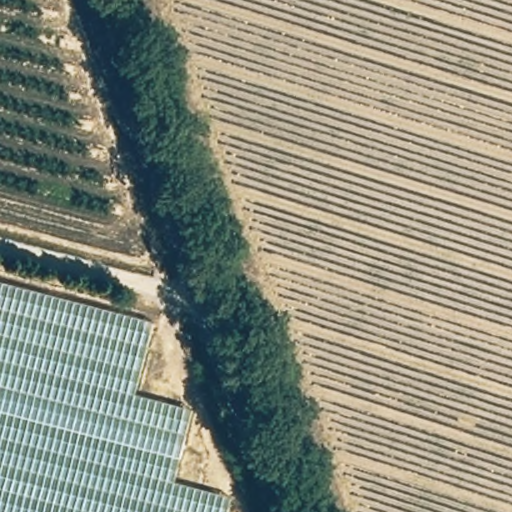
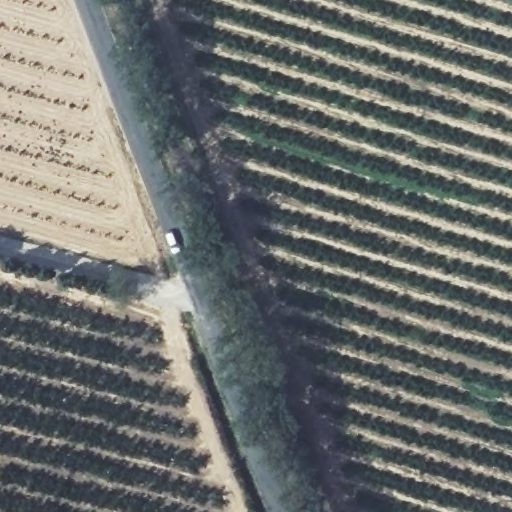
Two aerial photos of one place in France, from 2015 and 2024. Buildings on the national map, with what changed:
demolished [(0,284),(147,323),(132,392),(190,409),(172,482),(223,497),(220,512),(0,512),(0,284)]

